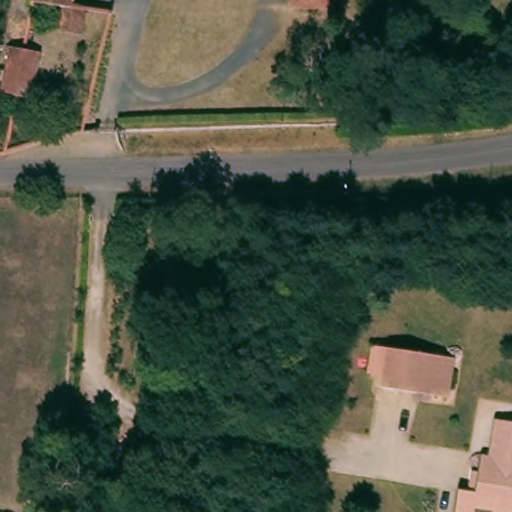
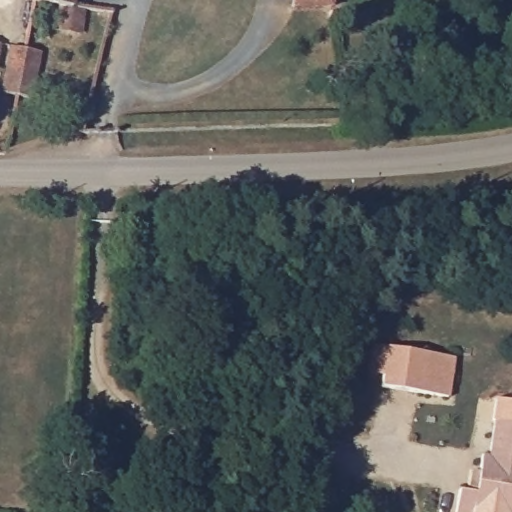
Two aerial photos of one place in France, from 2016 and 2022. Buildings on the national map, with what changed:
unchanged [(72,0),(70,7),(85,9),(81,31),(55,27),(58,6),(31,4),(32,0),(72,0)]
unchanged [(292,0),(331,0),(330,7),(326,7),(291,4),(292,0)]
unchanged [(24,49),(38,50),(29,97),(12,95),(1,92),(9,47),(24,49)]
unchanged [(387,390),(388,378),(373,376),(377,349),(392,350),(458,359),(453,398),(387,390)]
unchanged [(480,475),(483,457),(490,458),(496,422),(512,425),(512,512),(486,512),(477,510),(477,512),(458,512),(461,490),(469,492),(473,473),(480,475)]

